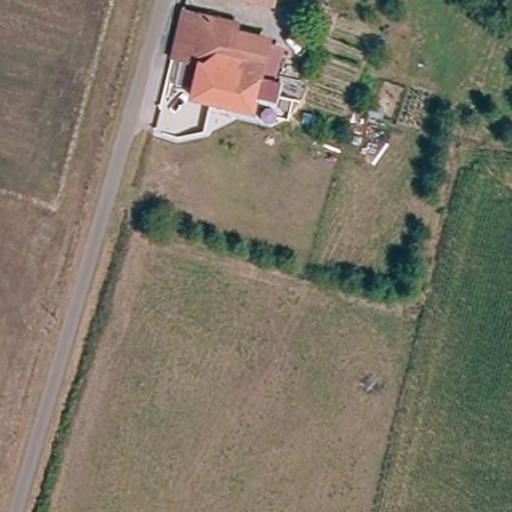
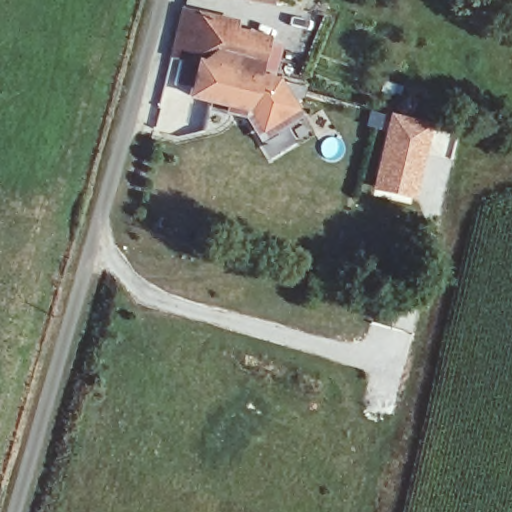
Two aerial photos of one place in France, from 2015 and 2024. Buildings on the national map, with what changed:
unchanged [(274,9),(220,0),(276,0),(274,9)]
unchanged [(241,20),(239,30),(272,38),(263,76),(255,110),(197,97),(205,64),(176,58),(178,51),(186,9),(241,20)]
new [(389,113),(432,124),(414,199),(371,189),(389,113)]

